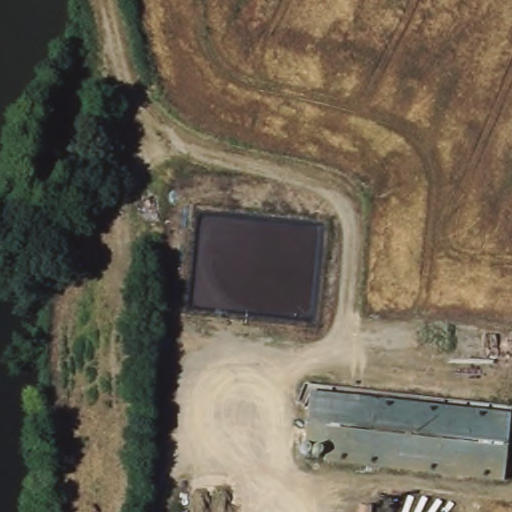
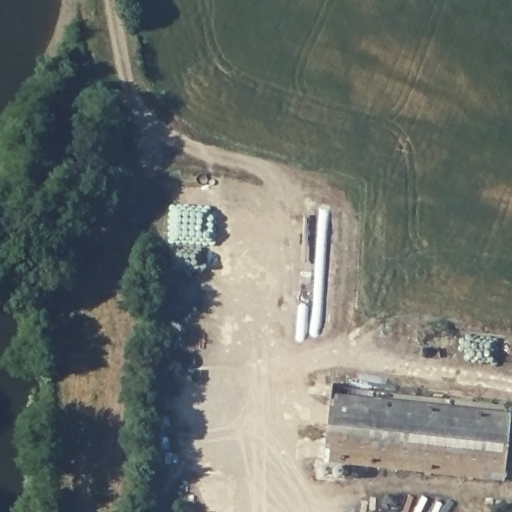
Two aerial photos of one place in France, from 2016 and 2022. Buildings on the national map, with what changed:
unchanged [(123,217),(96,219),(95,197),(119,190),(123,217)]
unchanged [(508,417),(503,477),(324,465),(325,450),(305,448),(308,403),(508,417)]

